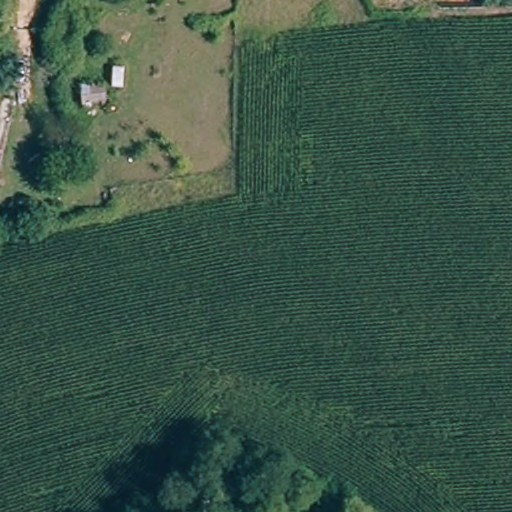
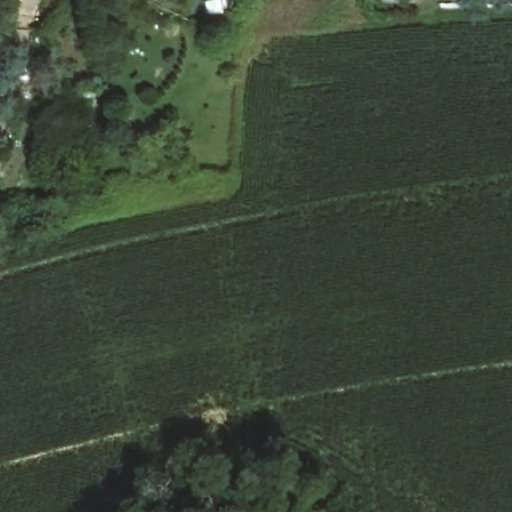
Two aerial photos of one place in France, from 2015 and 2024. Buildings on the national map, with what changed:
unchanged [(82,94),(78,180),(37,180),(43,96),(82,94)]

